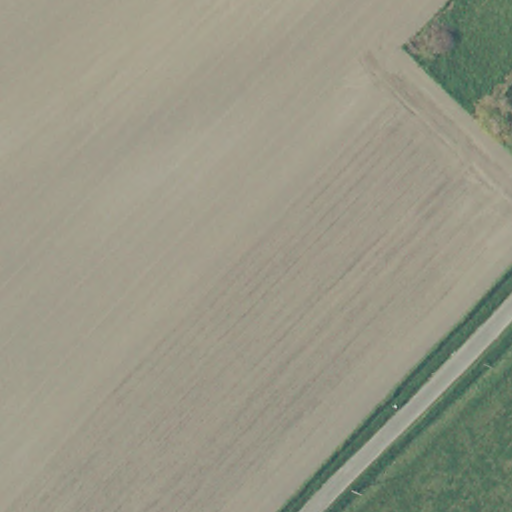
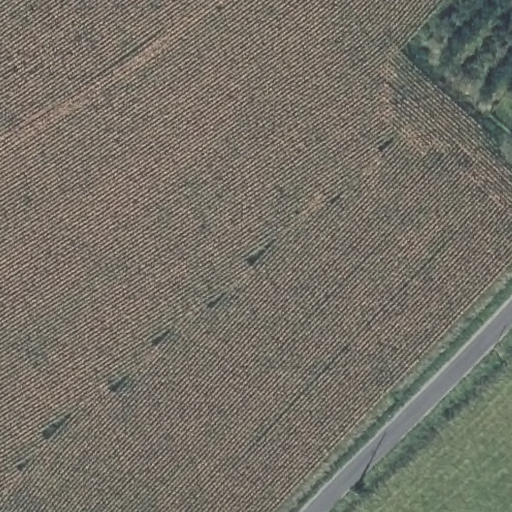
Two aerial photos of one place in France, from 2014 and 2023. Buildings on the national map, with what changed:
[]

